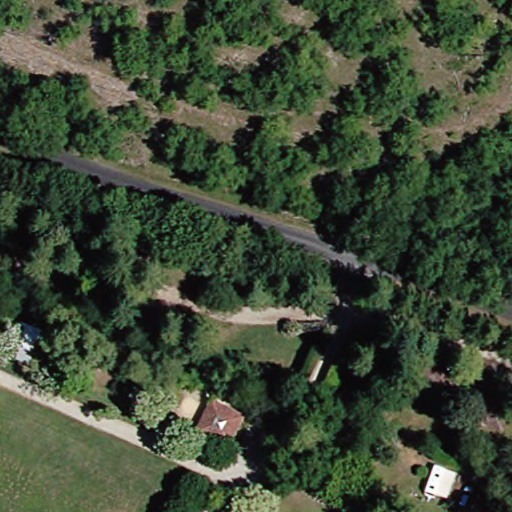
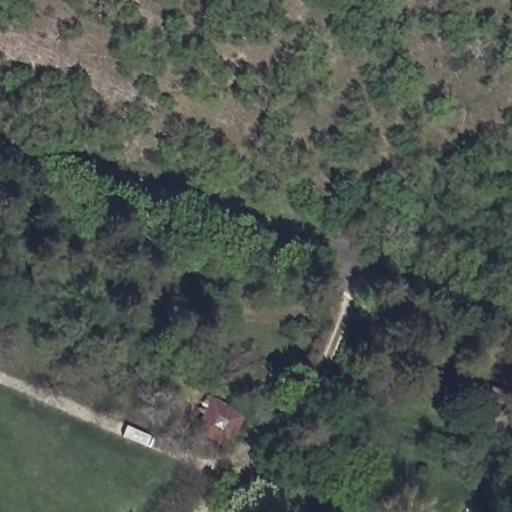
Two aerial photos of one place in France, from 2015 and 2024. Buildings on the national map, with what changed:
unchanged [(407,354),(396,395),(358,385),(372,345),(407,354)]
unchanged [(422,366),(460,378),(448,411),(410,397),(422,366)]
unchanged [(487,388),(512,397),(512,409),(500,439),(473,426),(487,388)]
unchanged [(242,417),(225,453),(192,438),(208,405),(242,417)]

